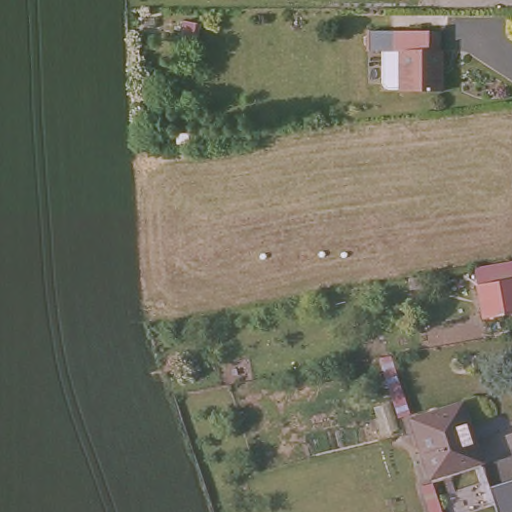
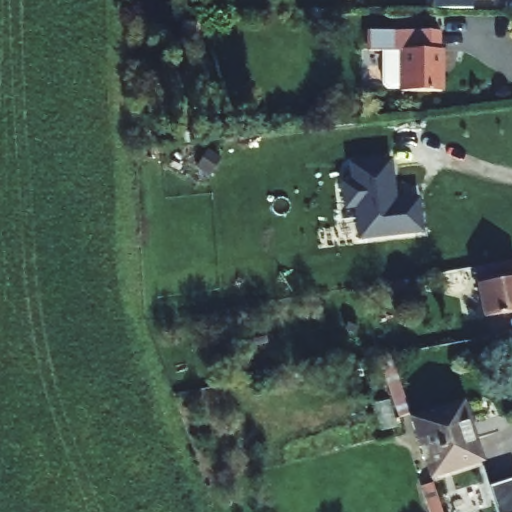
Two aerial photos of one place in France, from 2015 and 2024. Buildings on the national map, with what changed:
unchanged [(447,53),(452,53),(453,98),(413,99),(413,96),(400,96),(395,92),(395,58),(377,59),(377,39),(405,39),(447,39),(447,53)]
new [(355,185),(352,167),(392,162),(395,183),(393,183),(395,204),(420,201),(424,235),(360,242),(357,210),(347,211),(345,186),(355,185)]
unchanged [(483,277),(512,274),(512,323),(489,326),(483,277)]
unchanged [(468,408),(470,413),(474,431),(465,433),(475,471),(438,482),(420,420),(468,408)]

